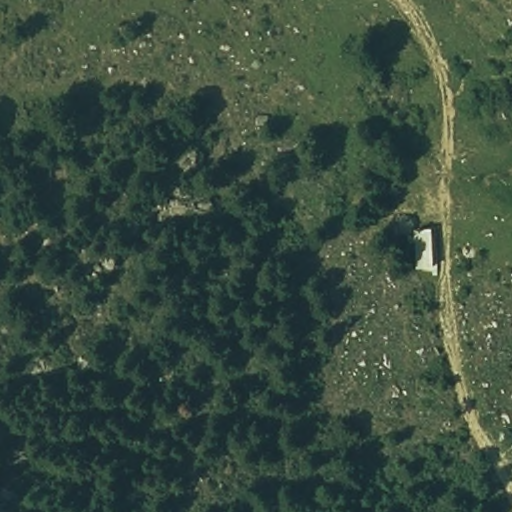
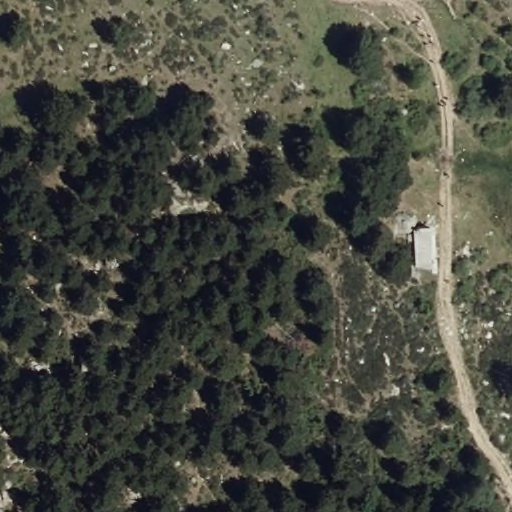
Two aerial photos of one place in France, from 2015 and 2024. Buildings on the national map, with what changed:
unchanged [(412,232),(432,231),(435,266),(415,268),(412,232)]

